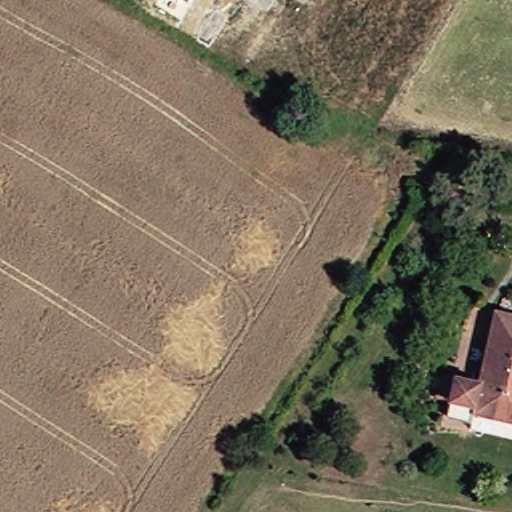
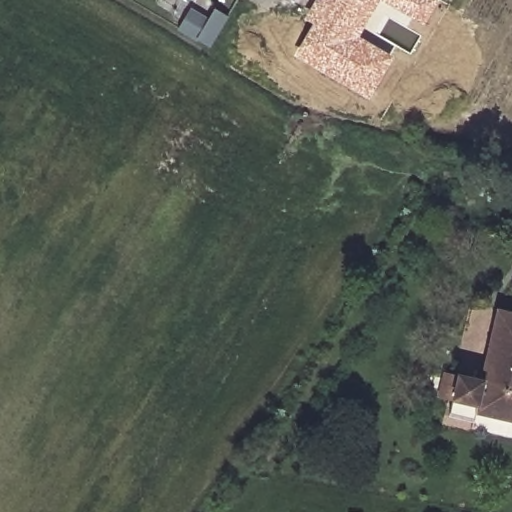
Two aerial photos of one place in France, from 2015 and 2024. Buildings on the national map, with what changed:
new [(187,0),(191,0),(190,2),(187,0)]
new [(304,18),(315,0),(380,0),(359,36),(394,57),(369,99),(294,55),(313,23),(304,18)]
new [(383,0),(439,0),(424,25),(383,0)]
new [(228,17),(210,47),(198,40),(182,30),(193,12),(209,21),(215,9),(228,17)]
unchanged [(480,411),(478,422),(454,416),(464,375),(486,380),(503,310),(512,312),(512,419),(480,411)]

